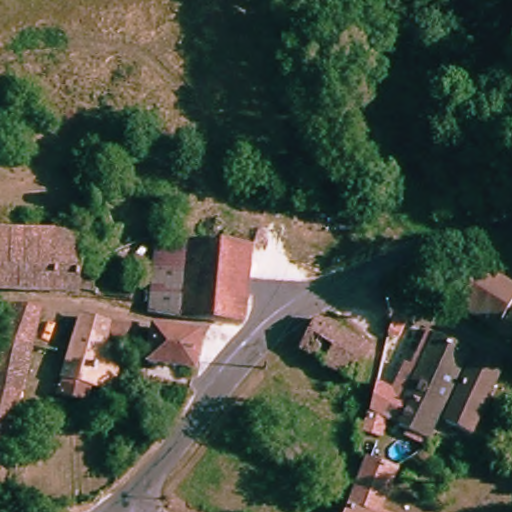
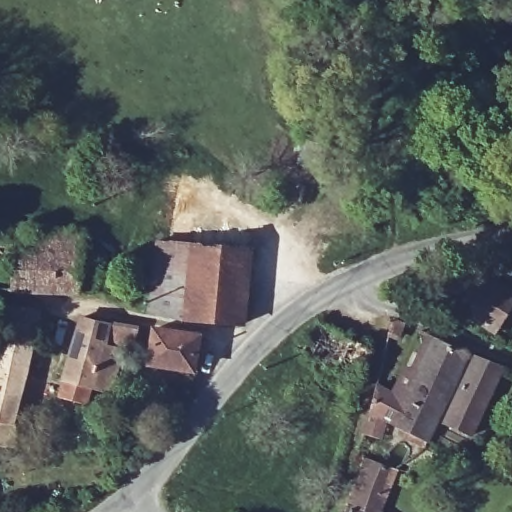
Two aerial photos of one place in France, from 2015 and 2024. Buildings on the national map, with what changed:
unchanged [(81,294),(0,290),(0,226),(84,232),(82,265),(95,267),(92,292),(81,291),(81,294)]
unchanged [(181,318),(149,312),(156,241),(249,249),(242,324),(181,318)]
unchanged [(481,270),(512,291),(512,303),(493,332),(457,308),(481,270)]
unchanged [(462,292),(456,300),(442,290),(448,282),(462,292)]
unchanged [(1,338),(8,315),(10,305),(39,309),(31,345),(1,338)]
unchanged [(90,388),(85,403),(58,396),(77,325),(79,315),(109,320),(137,326),(132,348),(126,346),(112,394),(90,388)]
unchanged [(403,323),(400,335),(388,332),(392,318),(403,323)]
unchanged [(369,348),(354,379),(300,350),(317,319),(369,348)]
unchanged [(197,336),(192,369),(147,363),(153,329),(197,336)]
unchanged [(431,335),(392,422),(368,410),(375,384),(390,391),(418,329),(431,335)]
unchanged [(426,440),(398,426),(399,424),(392,422),(431,335),(467,351),(426,440)]
unchanged [(1,338),(31,345),(12,424),(0,422),(0,341),(1,338)]
unchanged [(474,353),(501,364),(470,434),(443,422),(474,353)]
unchanged [(12,424),(14,448),(0,446),(0,422),(12,424)]
unchanged [(360,457),(386,467),(370,512),(371,512),(339,512),(360,457)]

